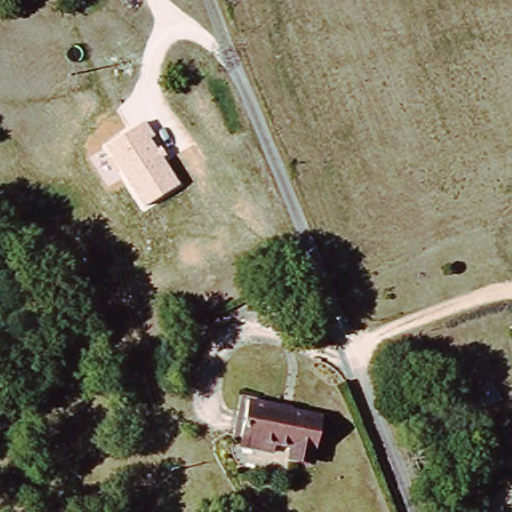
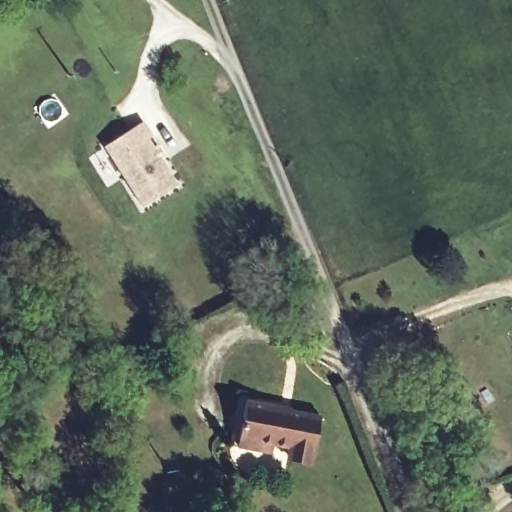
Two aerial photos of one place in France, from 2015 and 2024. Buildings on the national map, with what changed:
unchanged [(155,136),(150,140),(180,184),(146,208),(105,147),(144,121),(155,136)]
unchanged [(0,233),(1,232),(21,257),(2,271),(0,267),(0,233)]
unchanged [(84,338),(99,326),(112,342),(97,354),(84,338)]
unchanged [(242,399),(284,406),(284,408),(329,416),(320,462),(290,457),(292,447),(281,445),(277,456),(235,447),(242,399)]

